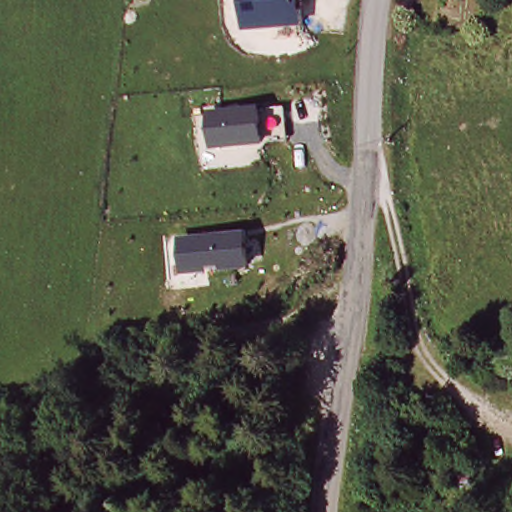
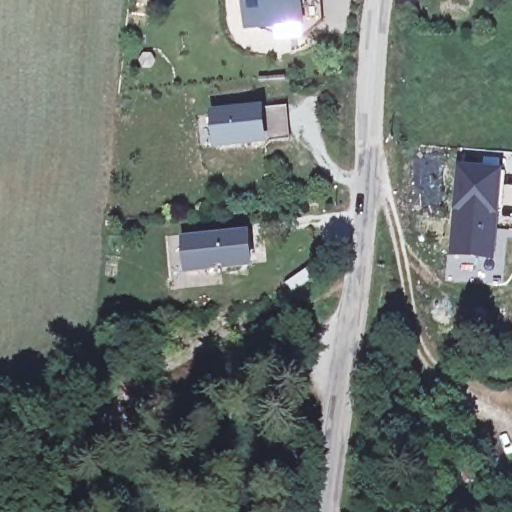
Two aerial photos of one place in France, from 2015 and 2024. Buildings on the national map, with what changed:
unchanged [(309,28),(248,32),(246,0),(307,0),(309,28)]
unchanged [(266,107),(269,145),(214,150),(213,111),(266,107)]
new [(461,166),(504,170),(502,216),(497,261),(452,256),(456,211),(461,166)]
unchanged [(249,231),(253,268),(225,271),(224,266),(211,267),(211,273),(184,275),(183,236),(249,231)]

